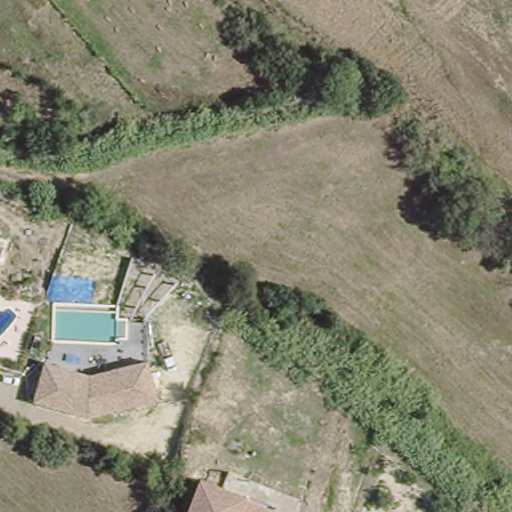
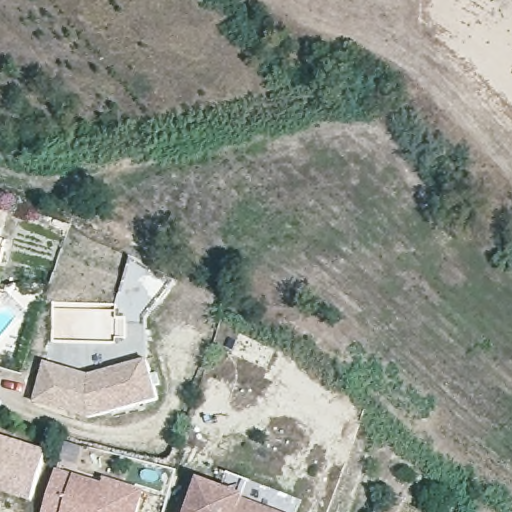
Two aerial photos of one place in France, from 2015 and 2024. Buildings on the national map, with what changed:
unchanged [(42,363),(85,375),(146,360),(156,403),(88,422),(31,401),(42,363)]
new [(30,499),(0,489),(0,434),(46,448),(30,499)]
new [(57,470),(102,483),(105,477),(145,490),(139,512),(43,512),(57,470)]
unchanged [(198,475),(245,491),(238,512),(184,512),(198,475)]
unchanged [(247,482),(301,500),(298,512),(238,512),(245,491),(247,482)]

